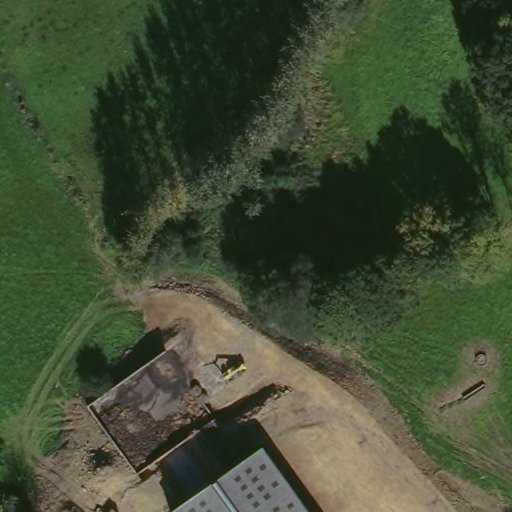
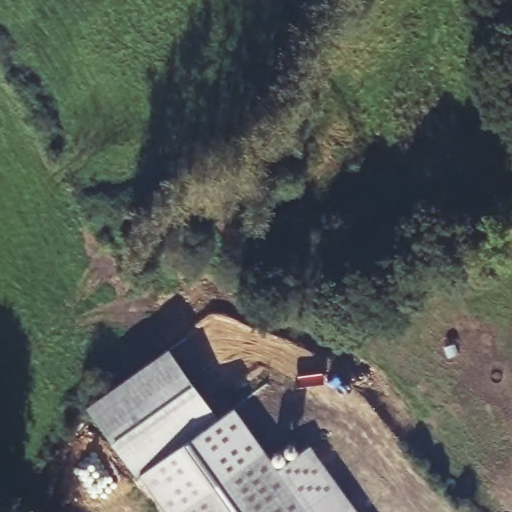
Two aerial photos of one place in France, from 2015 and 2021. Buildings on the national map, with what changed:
new [(135,479),(86,405),(168,349),(217,418),(236,405),(272,454),(292,441),(300,452),(309,445),(358,512),(302,512),(260,457),(187,512),(160,512),(135,479)]
unchanged [(302,512),(187,512),(260,457),(302,512)]

